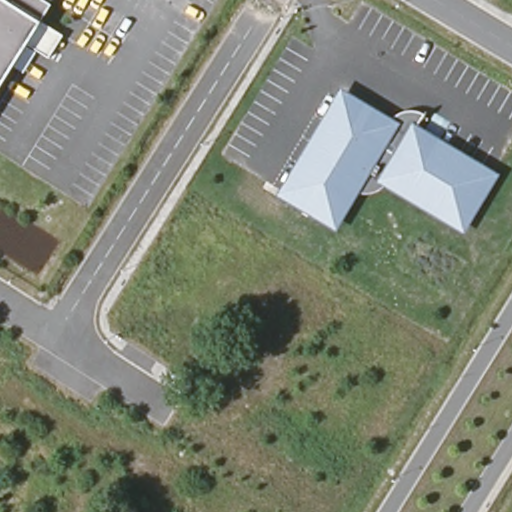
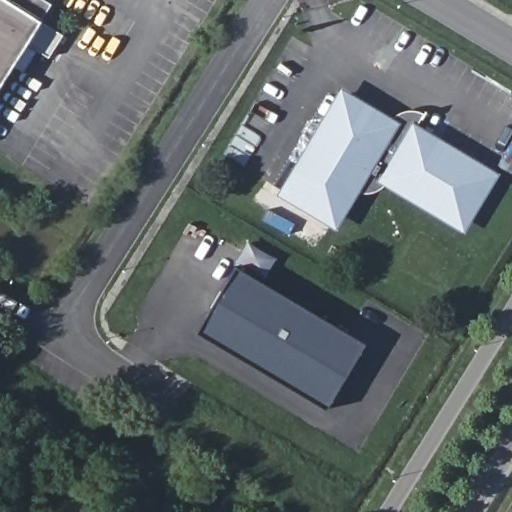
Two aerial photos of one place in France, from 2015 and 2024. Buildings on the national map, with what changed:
unchanged [(66,38),(52,60),(30,45),(0,92),(0,0),(9,0),(44,24),(66,38)]
unchanged [(44,24),(9,0),(45,0),(55,7),(44,24)]
unchanged [(347,95),(395,125),(361,181),(356,190),(337,221),(288,191),(347,95)]
unchanged [(388,180),(386,183),(383,185),(379,187),(376,189),(375,189),(373,190),(372,190),(370,190),(356,190),(361,181),(395,125),(397,122),(400,118),(402,115),(404,114),(407,111),(409,110),(415,109),(432,107),(418,131),(416,134),(404,154),(389,179),(388,180)]
unchanged [(404,154),(416,134),(418,131),(494,177),(465,225),(389,179),(404,154)]
new [(325,410),(195,332),(235,266),(365,344),(325,410)]

